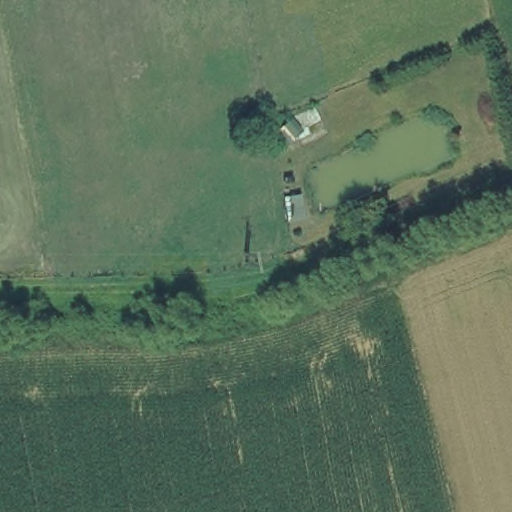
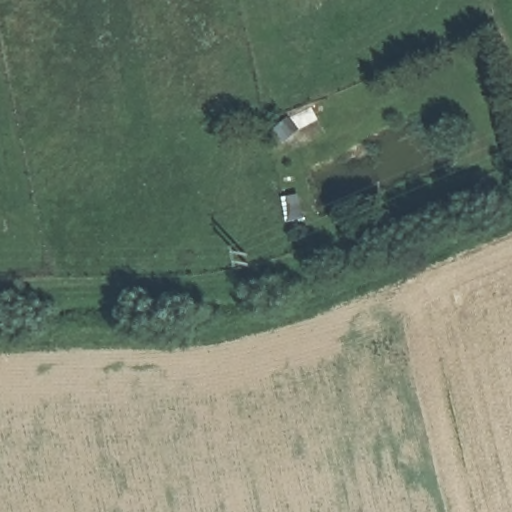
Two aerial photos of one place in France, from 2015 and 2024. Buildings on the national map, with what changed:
unchanged [(274,195),(294,192),(300,225),(282,231),(274,195)]

